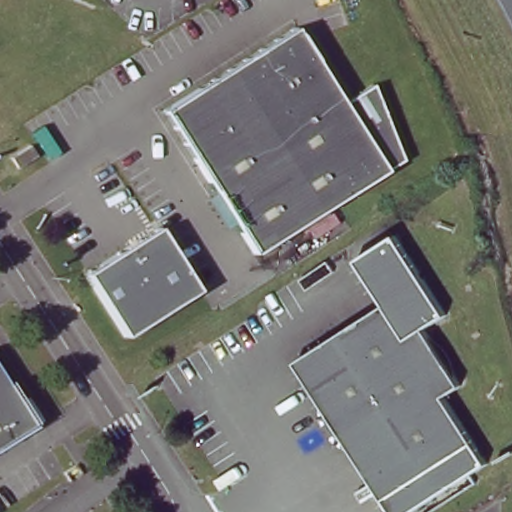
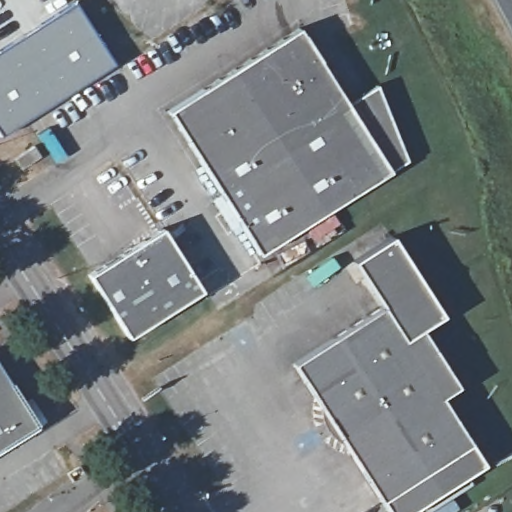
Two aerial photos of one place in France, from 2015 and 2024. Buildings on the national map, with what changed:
new [(112,62),(0,134),(0,50),(73,1),(112,62)]
unchanged [(165,112),(296,30),(344,106),(374,87),(404,163),(256,256),(165,112)]
unchanged [(21,156),(13,147),(34,134),(40,144),(21,156)]
unchanged [(87,274),(162,228),(202,291),(127,337),(87,274)]
unchanged [(350,259),(395,232),(447,310),(422,326),(402,337),(383,305),(350,259)]
unchanged [(383,305),(402,337),(422,326),(459,387),(442,398),(472,448),(383,501),(292,361),(383,305)]
unchanged [(36,424),(37,425),(0,449),(0,367),(22,402),(30,398),(43,419),(36,424)]
unchanged [(484,468),(413,512),(391,512),(383,501),(472,448),(484,468)]

